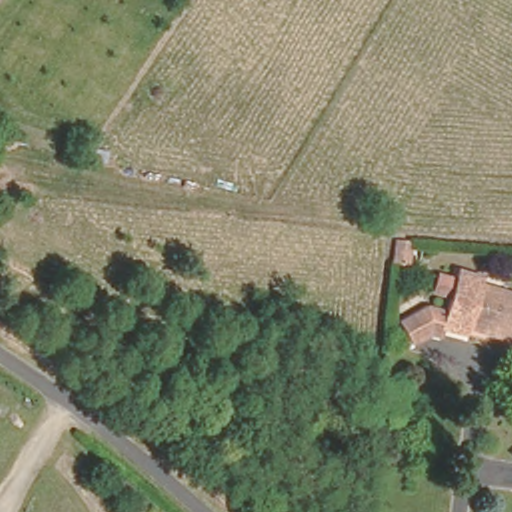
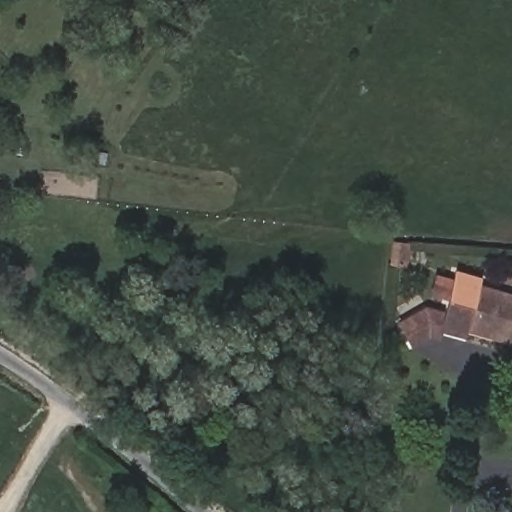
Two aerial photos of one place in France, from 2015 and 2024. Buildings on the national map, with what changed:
unchanged [(452,339),(420,330),(417,338),(400,348),(388,327),(419,310),(434,314),(445,276),(512,295),(512,345),(455,327),(452,339)]

